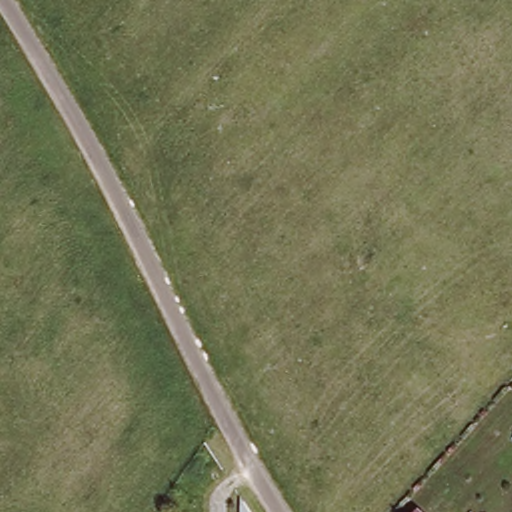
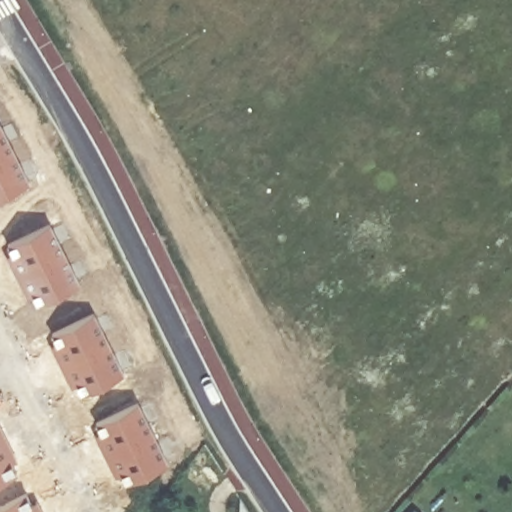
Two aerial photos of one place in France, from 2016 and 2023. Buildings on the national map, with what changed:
new [(29,182),(0,197),(0,123),(29,182)]
new [(49,223),(80,284),(38,305),(29,287),(23,290),(10,264),(16,261),(8,244),(49,223)]
new [(94,312),(123,373),(82,394),(73,376),(68,380),(54,354),(61,350),(53,333),(94,312)]
new [(138,401),(168,462),(126,483),(118,465),(111,469),(98,443),(104,440),(96,422),(138,401)]
new [(1,428),(14,455),(8,457),(17,475),(0,483),(0,429),(1,428)]
new [(35,510),(40,507),(42,512),(0,512),(0,506),(26,493),(35,510)]
unchanged [(417,512),(410,512),(413,508),(417,512)]

